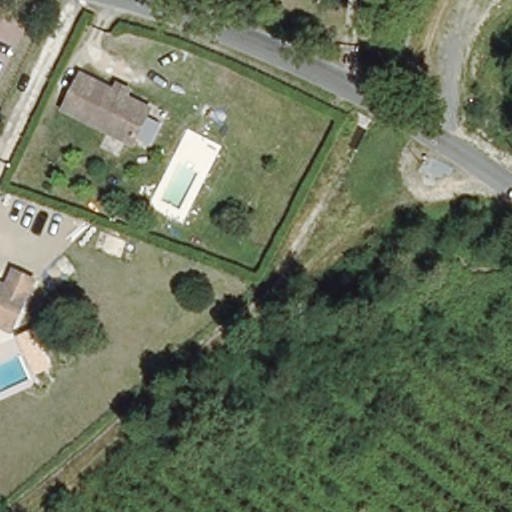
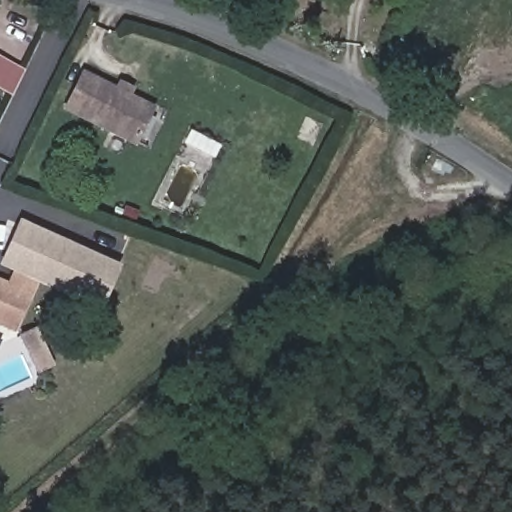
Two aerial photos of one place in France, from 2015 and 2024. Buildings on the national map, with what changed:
unchanged [(126,142),(53,106),(71,72),(106,89),(111,82),(124,88),(119,96),(144,107),(126,142)]
new [(33,280),(34,276),(14,267),(13,270),(0,264),(0,262),(20,218),(121,264),(102,308),(33,280)]
unchanged [(0,326),(0,297),(14,267),(34,276),(8,330),(0,326)]

